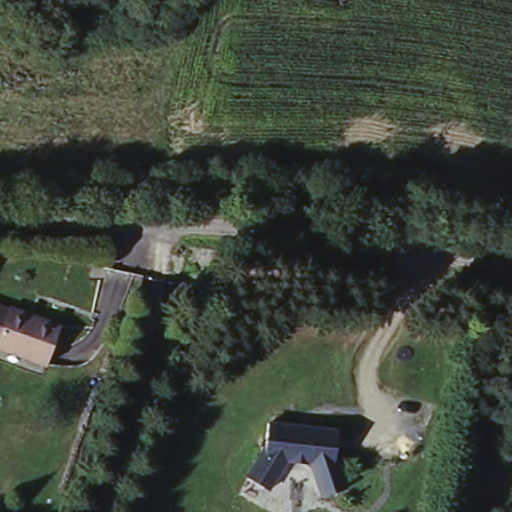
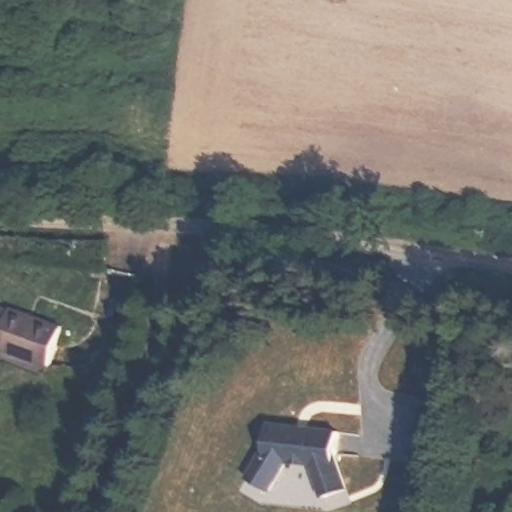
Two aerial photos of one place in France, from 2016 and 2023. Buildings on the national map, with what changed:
unchanged [(0,343),(0,303),(15,308),(15,306),(66,326),(51,365),(0,346),(0,345),(0,343)]
unchanged [(258,458),(263,425),(331,432),(328,458),(345,488),(317,498),(306,469),(287,466),(266,496),(241,477),(258,458)]

